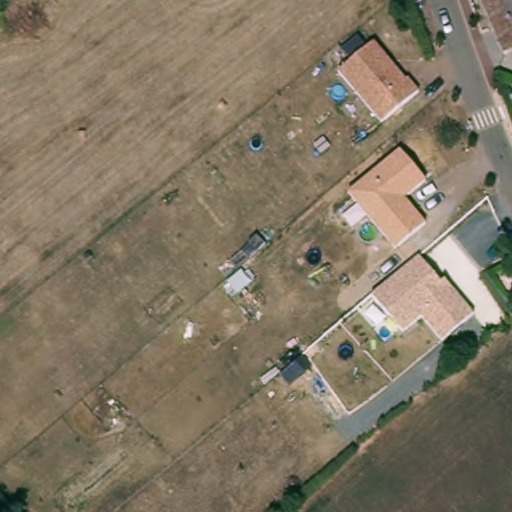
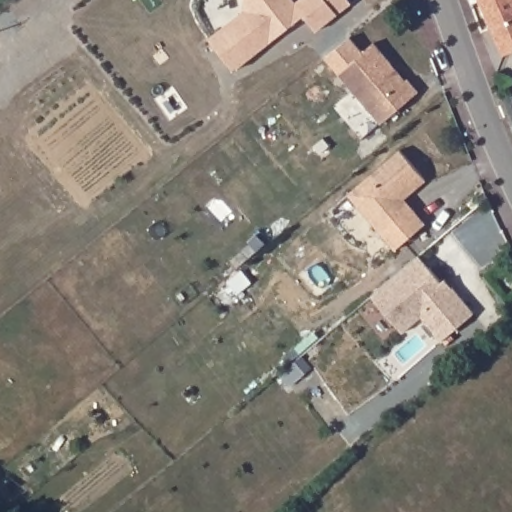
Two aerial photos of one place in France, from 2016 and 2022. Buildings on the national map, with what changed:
new [(305,17),(234,71),(209,37),(245,10),(245,0),(296,0),(297,0),(351,0),(353,1),(317,30),(305,17)]
unchanged [(502,56),(474,0),(512,0),(512,51),(502,56)]
unchanged [(418,90),(382,123),(337,72),(374,40),(418,90)]
unchanged [(426,180),(405,198),(428,224),(396,252),(347,193),(401,148),(426,180)]
unchanged [(440,280),(444,277),(474,312),(443,342),(422,316),(402,332),(371,294),(418,254),(440,280)]

